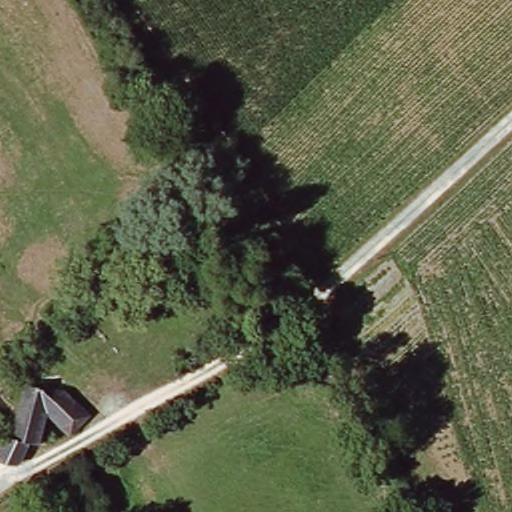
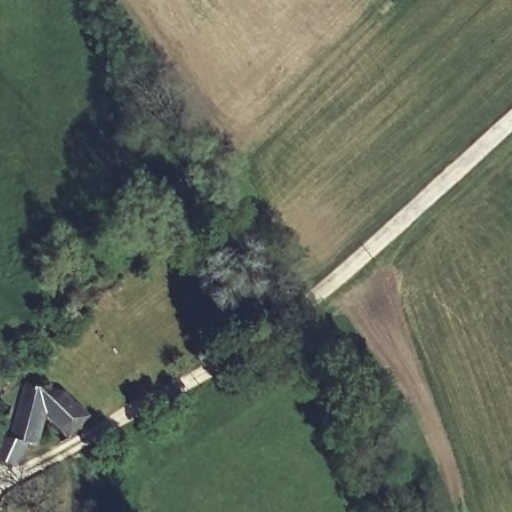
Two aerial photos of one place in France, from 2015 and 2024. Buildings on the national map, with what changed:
unchanged [(4,442),(9,444),(23,385),(33,387),(68,396),(76,406),(89,421),(70,441),(46,415),(38,451),(25,448),(20,472),(0,467),(0,457),(4,442)]

